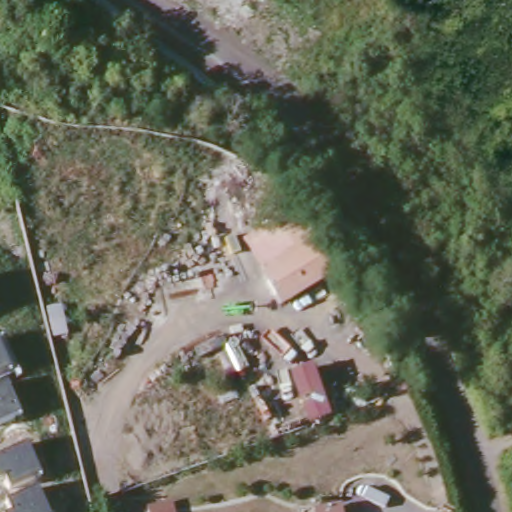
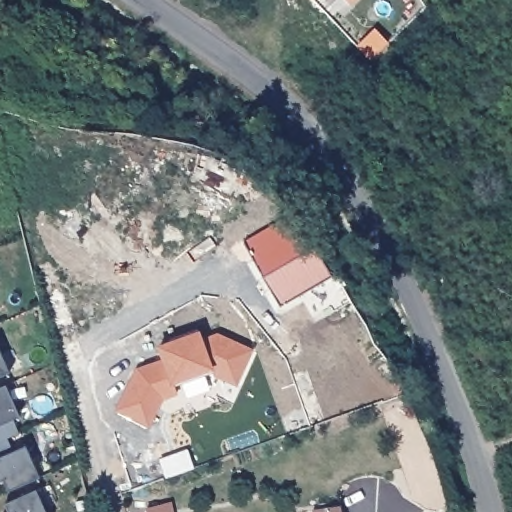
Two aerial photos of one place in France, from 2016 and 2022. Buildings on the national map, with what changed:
new [(347,0),(355,0),(351,4),(347,0)]
unchanged [(331,91),(324,102),(311,94),(317,83),(331,91)]
unchanged [(284,309),(251,250),(304,220),(319,245),(336,278),(284,309)]
new [(238,387),(206,372),(174,384),(178,396),(162,400),(148,429),(115,412),(136,371),(162,361),(158,346),(200,332),(206,341),(212,332),(253,349),(238,387)]
unchanged [(0,378),(0,346),(13,372),(0,378)]
unchanged [(0,423),(0,385),(6,382),(20,415),(0,423)]
unchanged [(10,491),(6,480),(0,483),(0,456),(28,444),(41,479),(10,491)]
unchanged [(49,512),(8,512),(4,501),(39,488),(49,512)]
unchanged [(177,512),(143,512),(141,506),(174,497),(177,512)]
unchanged [(314,511),(343,507),(343,512),(314,512),(314,511)]

